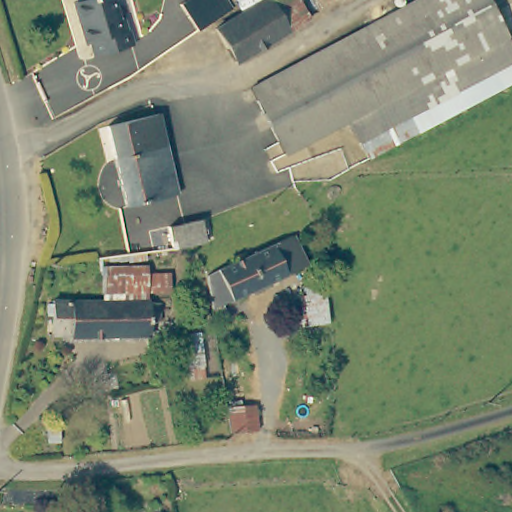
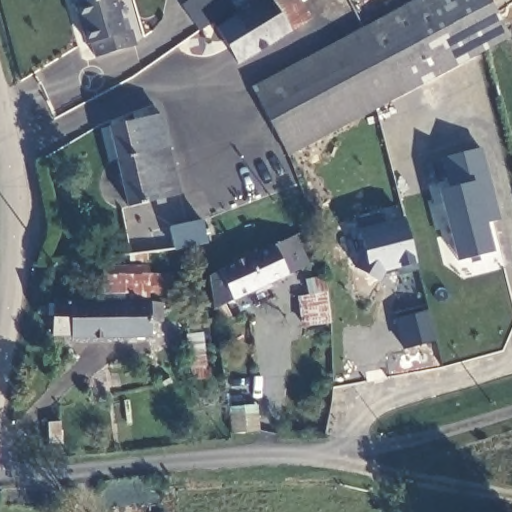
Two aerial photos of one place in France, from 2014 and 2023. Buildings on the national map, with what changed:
unchanged [(96,56),(91,42),(87,44),(75,2),(83,0),(114,0),(123,31),(130,29),(134,45),(96,56)]
unchanged [(173,4),(181,0),(221,0),(228,12),(192,34),(173,4)]
unchanged [(281,159),(246,92),(420,0),(482,0),(503,41),(502,41),(344,126),(281,159)]
unchanged [(265,0),(290,0),(304,24),(283,36),(262,1),(265,0)]
unchanged [(232,67),(210,33),(262,1),(283,36),(232,67)]
unchanged [(122,211),(103,131),(155,119),(174,199),(122,211)]
new [(497,224),(488,227),(493,251),(458,260),(439,189),(448,186),(441,157),(478,149),(497,224)]
new [(416,269),(397,273),(396,266),(383,270),(377,280),(354,266),(365,250),(356,217),(382,211),(385,223),(403,219),(416,269)]
unchanged [(206,242),(191,245),(174,249),(169,226),(200,220),(206,242)]
unchanged [(213,270),(224,265),(288,235),(302,265),(208,308),(203,276),(213,270)]
unchanged [(145,298),(145,302),(157,302),(156,321),(145,322),(145,336),(66,337),(66,335),(47,335),(48,300),(98,300),(97,275),(97,268),(142,267),(142,274),(166,273),(166,291),(143,292),(143,298),(145,298)]
unchanged [(303,295),(300,280),(318,277),(321,291),(303,295)]
new [(427,310),(434,341),(403,349),(395,318),(427,310)]
unchanged [(301,325),(300,312),(320,311),(322,324),(301,325)]
unchanged [(190,367),(187,342),(202,341),(204,366),(206,378),(190,380),(190,367)]
unchanged [(232,432),(229,406),(256,406),(257,430),(232,432)]

